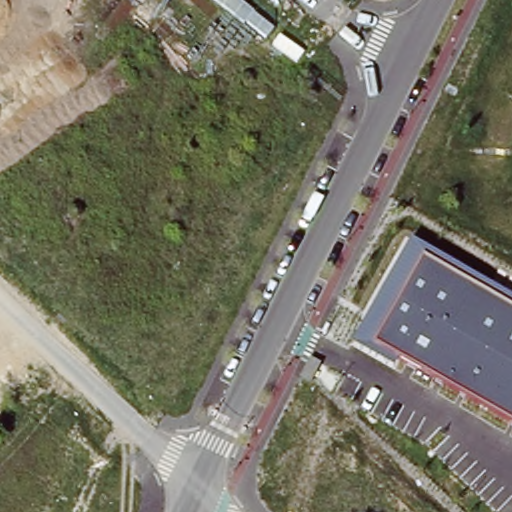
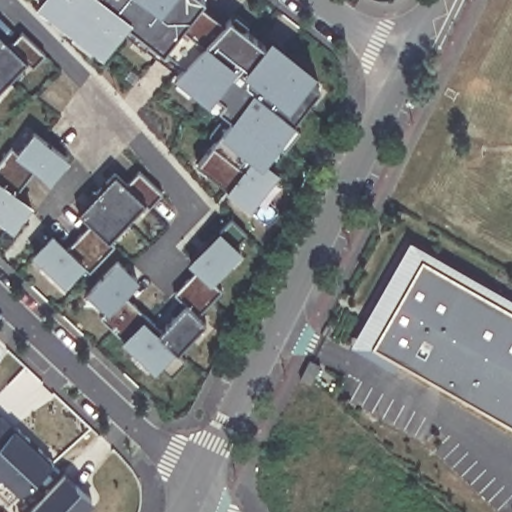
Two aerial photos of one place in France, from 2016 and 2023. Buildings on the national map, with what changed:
new [(300,122),(285,144),(279,140),(265,157),(279,169),(251,207),(224,186),(226,185),(199,162),(224,132),(220,129),(231,112),(218,104),(223,96),(216,90),(208,100),(172,70),(176,65),(122,28),(104,51),(35,0),(200,0),(226,20),(230,16),(263,42),(271,32),(316,69),(310,77),(318,86),(293,116),(300,122)]
new [(33,66),(27,60),(0,88),(0,34),(10,42),(21,31),(44,52),(33,66)]
new [(51,181),(35,169),(17,190),(33,204),(13,229),(0,220),(0,160),(11,146),(16,150),(33,127),(69,157),(51,181)]
new [(149,205),(145,200),(109,237),(115,244),(90,270),(84,264),(64,284),(31,252),(52,230),(69,246),(91,222),(79,210),(115,172),(127,182),(139,170),(161,192),(149,205)]
new [(237,244),(242,249),(212,281),(221,290),(198,315),(205,322),(177,350),(184,358),(170,375),(159,364),(154,370),(121,339),(124,335),(101,315),(107,310),(86,289),(117,255),(139,277),(123,295),(160,328),(184,304),(174,293),(198,270),(187,259),(219,226),(222,227),(230,217),(246,232),(237,244)]
unchanged [(394,370),(349,344),(409,240),(512,297),(512,425),(399,361),(394,370)]
new [(2,415),(15,427),(16,425),(30,439),(29,440),(37,448),(39,447),(54,461),(9,502),(0,494),(0,479),(4,475),(0,472),(0,417),(2,415)]
new [(66,472),(94,498),(81,512),(28,512),(66,472)]

